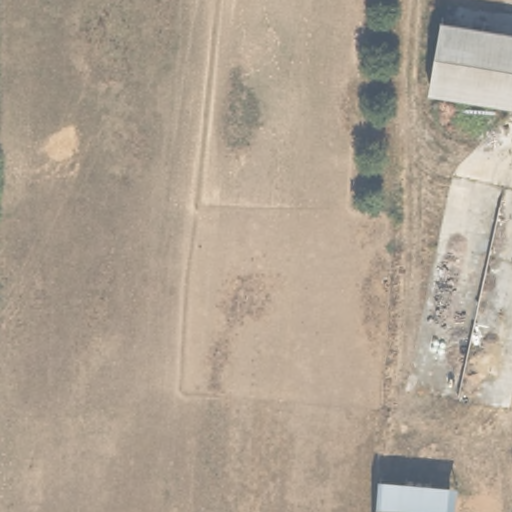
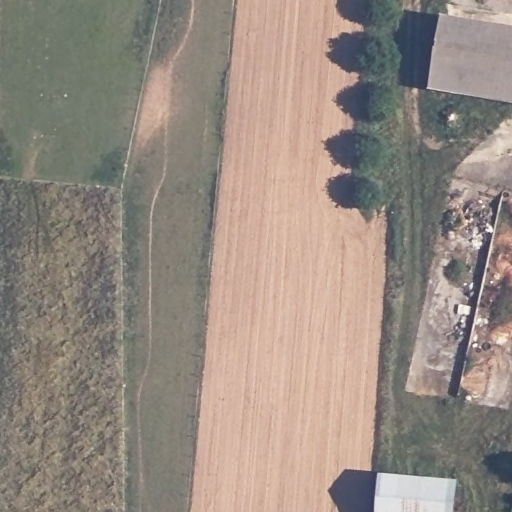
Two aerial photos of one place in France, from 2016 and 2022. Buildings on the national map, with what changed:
unchanged [(512,27),(512,100),(432,87),(443,15),(512,27)]
unchanged [(457,512),(382,512),(385,475),(460,480),(457,512)]

